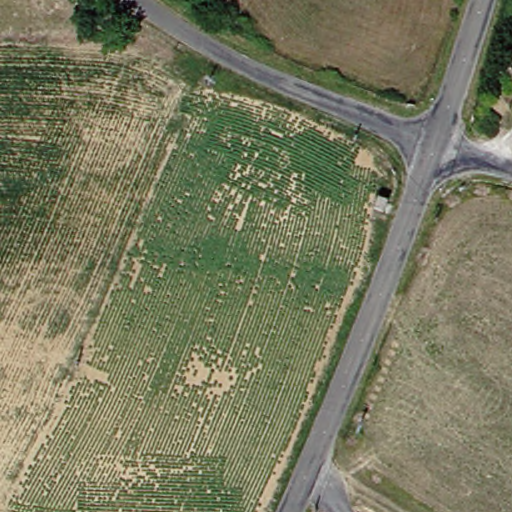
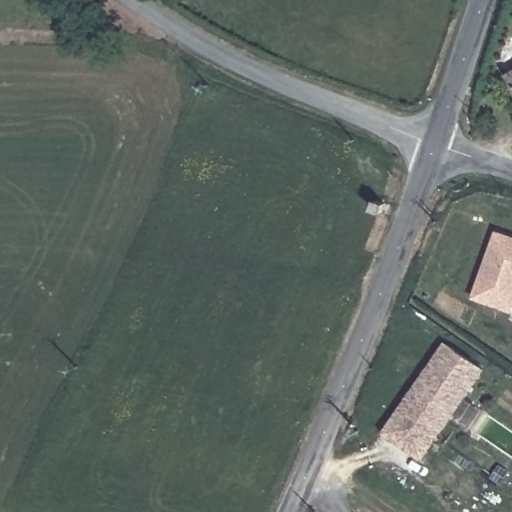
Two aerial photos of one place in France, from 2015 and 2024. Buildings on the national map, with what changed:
unchanged [(512,70),(512,96),(502,75),(512,70)]
new [(493,232),(512,239),(512,316),(469,300),(493,232)]
new [(450,345),(487,370),(440,438),(403,412),(450,345)]
new [(440,438),(425,458),(388,433),(403,412),(440,438)]

